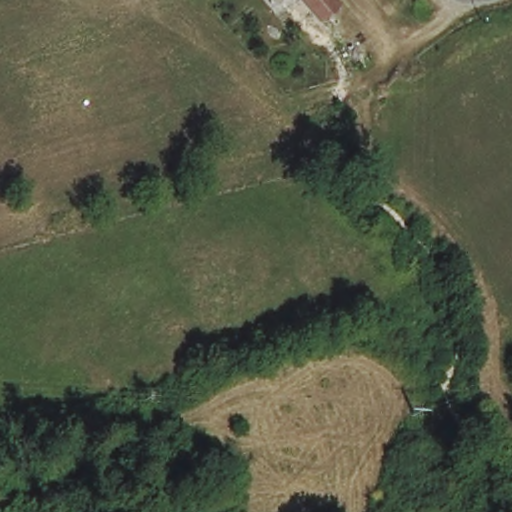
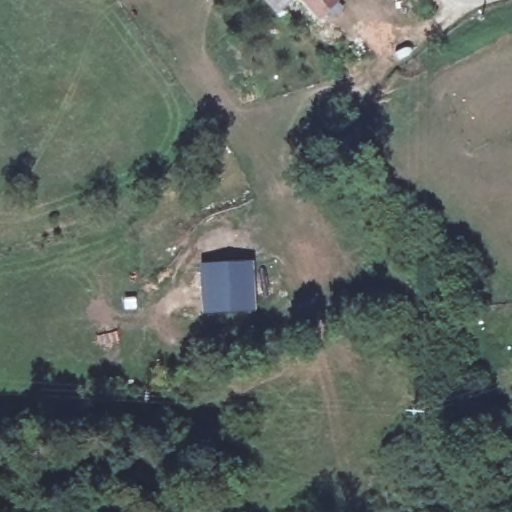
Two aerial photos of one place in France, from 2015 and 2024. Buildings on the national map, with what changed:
new [(278,14),(266,0),(291,0),(278,14)]
new [(340,1),(319,19),(300,0),(338,0),(340,1)]
demolished [(337,4),(322,16),(315,9),(321,2),(319,0),(335,0),(337,4)]
new [(256,310),(203,313),(200,263),(252,260),(256,310)]

